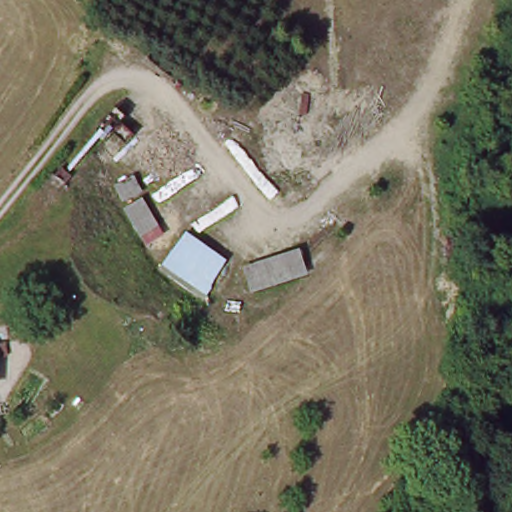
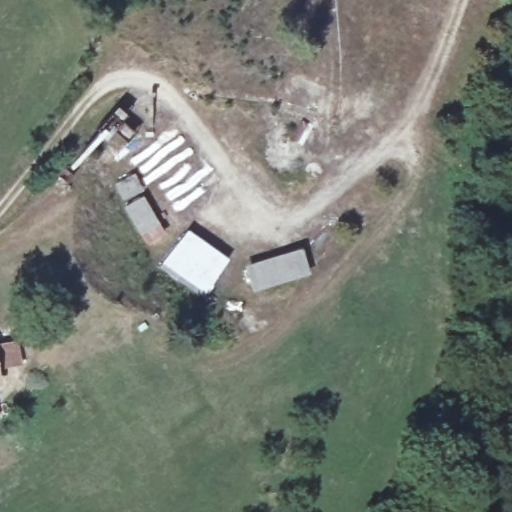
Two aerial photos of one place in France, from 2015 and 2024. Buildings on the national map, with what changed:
unchanged [(229,258),(208,295),(164,267),(186,229),(229,258)]
unchanged [(303,247),(309,277),(249,293),(245,263),(303,247)]

